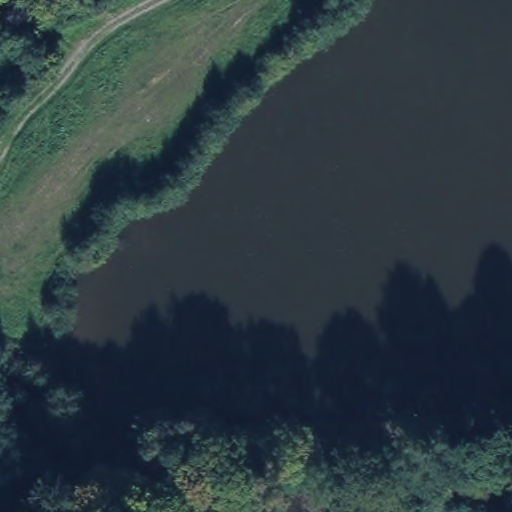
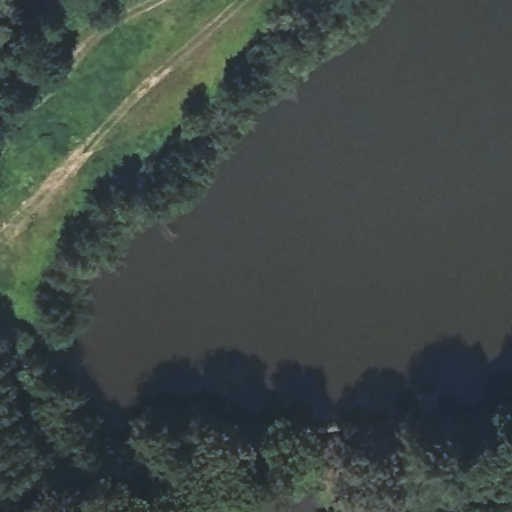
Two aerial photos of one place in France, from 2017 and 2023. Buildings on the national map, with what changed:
unchanged [(322,435),(345,433),(345,429),(353,428),(354,432),(385,431),(385,439),(386,451),(380,451),(380,454),(342,456),(342,447),(323,448),(322,441),(322,435)]

